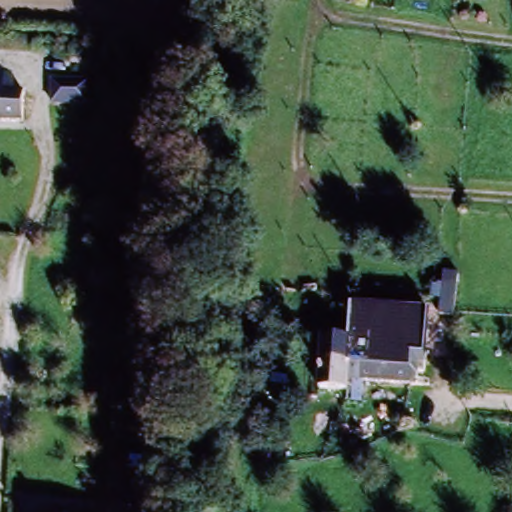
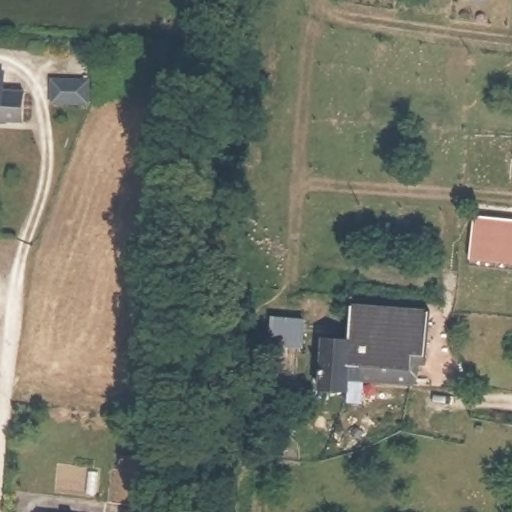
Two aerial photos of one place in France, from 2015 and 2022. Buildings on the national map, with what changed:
unchanged [(45,104),(47,80),(83,84),(81,107),(45,104)]
unchanged [(16,127),(0,125),(0,95),(19,97),(16,127)]
new [(512,220),(512,266),(469,261),(474,217),(512,220)]
unchanged [(358,305),(429,308),(428,363),(416,365),(413,345),(382,344),(355,343),(358,305)]
unchanged [(349,343),(355,343),(382,344),(413,345),(416,365),(419,385),(345,384),(344,394),(316,392),(317,338),(349,343)]

